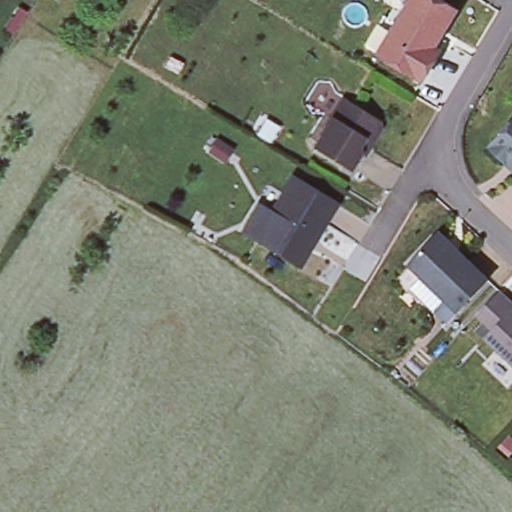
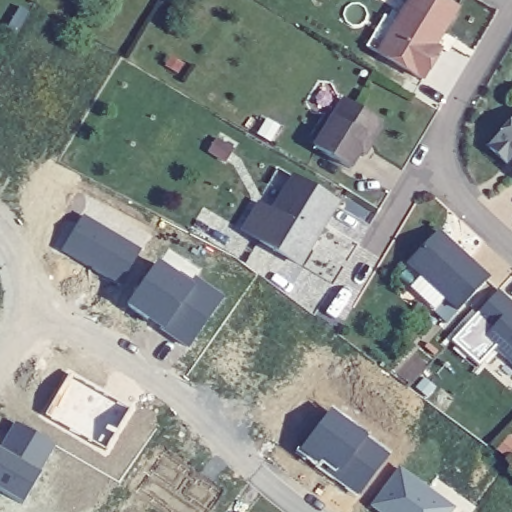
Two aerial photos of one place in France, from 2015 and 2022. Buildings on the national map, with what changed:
unchanged [(454,10),(427,56),(434,60),(422,80),(379,54),(397,24),(411,0),(439,0),(454,10)]
unchanged [(336,121),(348,103),(379,122),(380,129),(374,139),(367,140),(349,169),(314,147),(331,118),(336,121)]
unchanged [(509,160),(506,163),(488,147),(512,121),(512,162),(509,160)]
unchanged [(336,204),(314,240),(307,236),(292,261),(256,239),(271,213),(293,177),(336,204)]
new [(84,215),(142,250),(121,285),(62,252),(84,215)]
unchanged [(434,288),(408,263),(434,236),(456,257),(459,253),(487,279),(458,311),(444,298),(433,311),(422,301),(434,288)]
new [(193,281),(198,276),(226,296),(191,347),(128,305),(158,260),(193,281)]
unchanged [(483,338),(474,331),(483,322),(475,315),(499,290),(512,303),(512,365),(483,338)]
new [(131,408),(106,453),(44,415),(70,373),(131,408)]
new [(370,435),(368,437),(391,454),(360,497),(299,450),(333,407),(370,435)]
new [(23,502),(0,490),(0,444),(2,445),(16,420),(54,442),(23,502)]
new [(451,512),(378,512),(370,507),(399,465),(455,507),(451,512)]

